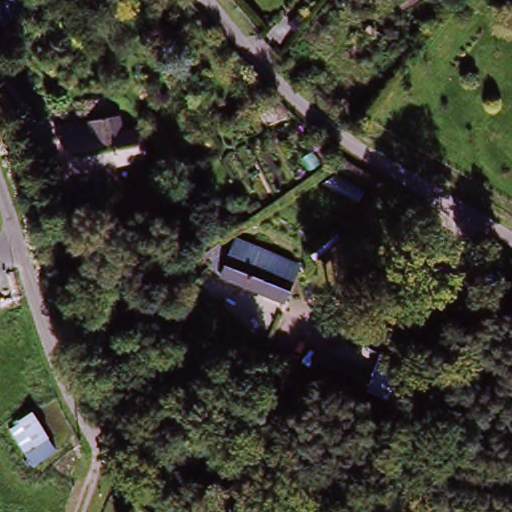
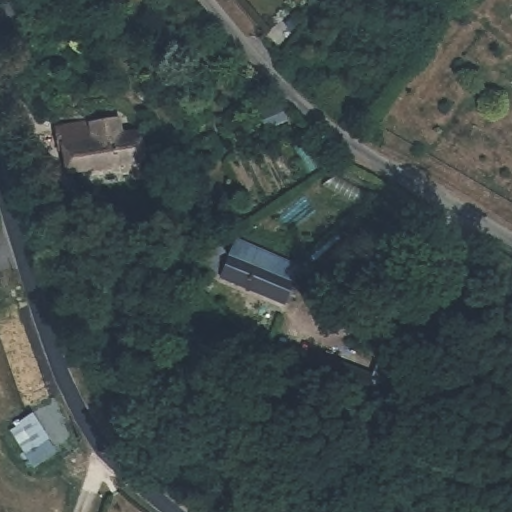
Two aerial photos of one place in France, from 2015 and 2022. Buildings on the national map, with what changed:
unchanged [(286,20),(297,32),(277,48),(266,37),(286,20)]
unchanged [(127,174),(58,177),(58,152),(58,136),(85,135),(86,150),(125,150),(127,174)]
unchanged [(300,263),(295,276),(301,279),(291,302),(227,277),(240,242),(300,263)]
unchanged [(217,265),(223,277),(208,283),(203,272),(217,265)]
unchanged [(46,404),(71,440),(48,456),(26,421),(46,404)]

